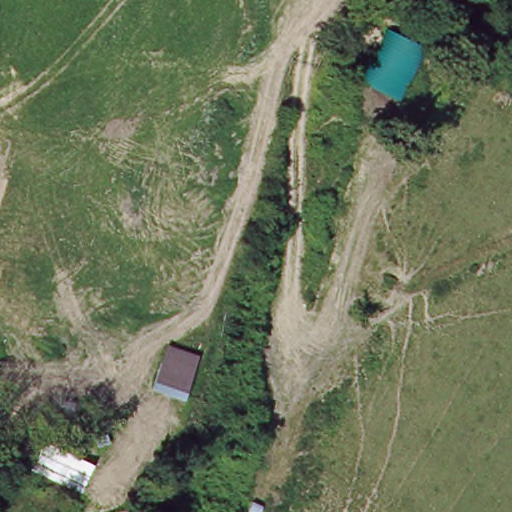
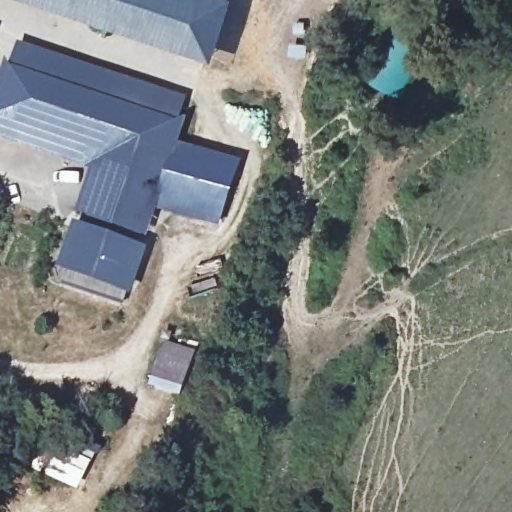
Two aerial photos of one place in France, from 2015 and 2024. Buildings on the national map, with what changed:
new [(225,1),(205,63),(17,0),(223,0),(225,1)]
unchanged [(403,99),(366,82),(392,26),(429,42),(403,99)]
new [(8,63),(18,41),(186,98),(177,122),(182,124),(145,239),(140,237),(137,247),(147,250),(130,296),(122,294),(122,304),(60,286),(64,273),(57,270),(72,224),(88,171),(0,141),(0,75),(5,61),(8,63)]
new [(177,143),(242,163),(220,229),(155,210),(177,143)]
unchanged [(183,398),(150,383),(167,343),(202,355),(183,398)]
new [(77,492),(32,470),(45,442),(90,464),(77,492)]

